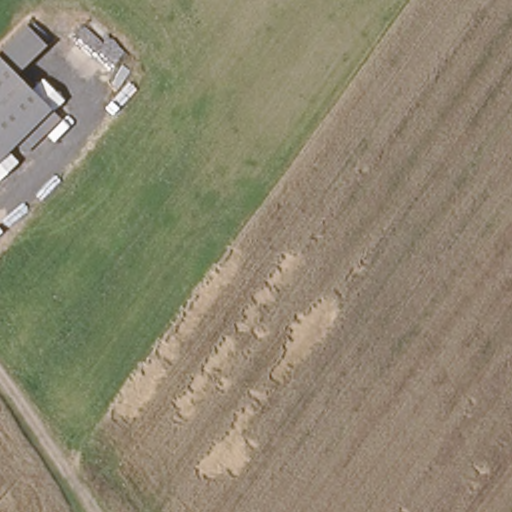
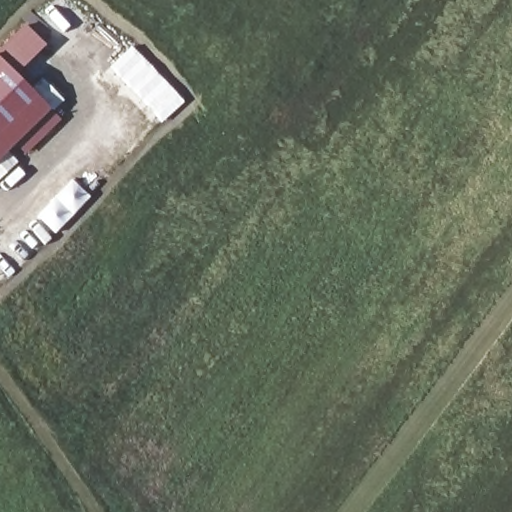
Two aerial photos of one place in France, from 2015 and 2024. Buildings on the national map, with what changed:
unchanged [(22,80),(0,56),(0,46),(23,24),(49,52),(22,80)]
unchanged [(59,119),(46,132),(34,119),(0,153),(0,56),(22,80),(59,119)]

